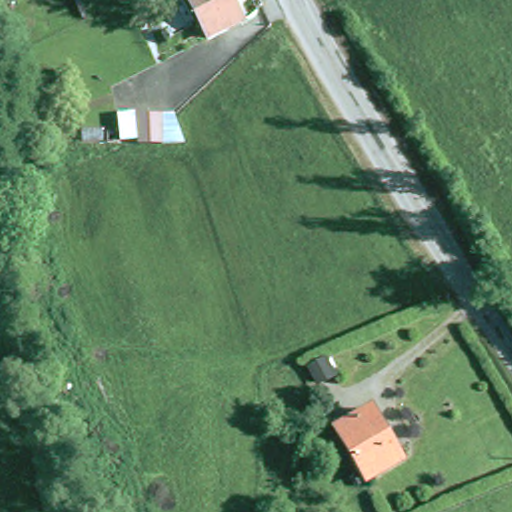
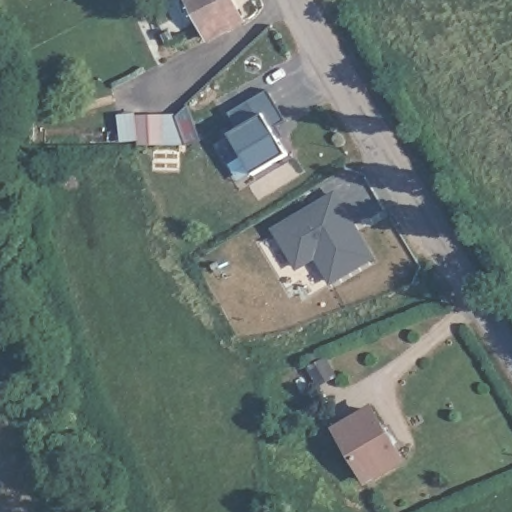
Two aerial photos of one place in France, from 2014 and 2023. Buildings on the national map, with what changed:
unchanged [(188,0),(231,0),(241,24),(206,40),(188,0)]
new [(276,123),(284,136),(279,140),(287,154),(254,174),(230,133),(240,127),(230,110),(270,90),(286,119),(276,123)]
new [(187,108),(200,140),(185,144),(139,145),(139,140),(148,140),(125,139),(125,111),(148,111),(177,114),(187,108)]
demolished [(125,139),(125,111),(148,111),(148,140),(125,139)]
new [(335,190),(376,258),(330,285),(316,259),(296,271),(271,229),(335,190)]
unchanged [(371,411),(398,461),(362,481),(335,430),(371,411)]

